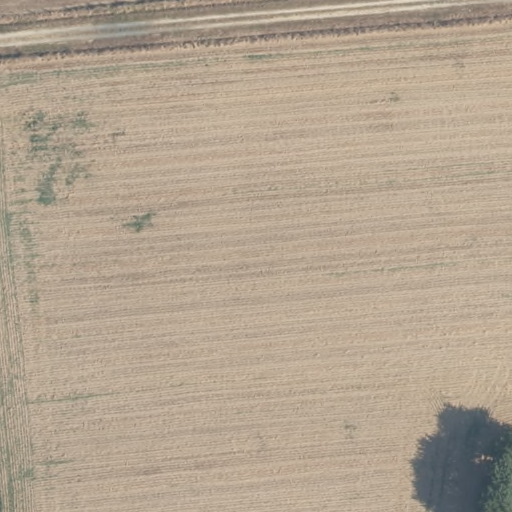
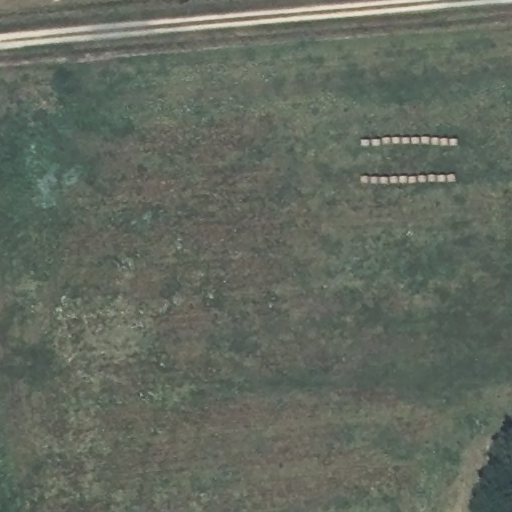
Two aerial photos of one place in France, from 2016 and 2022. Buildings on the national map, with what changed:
[]

